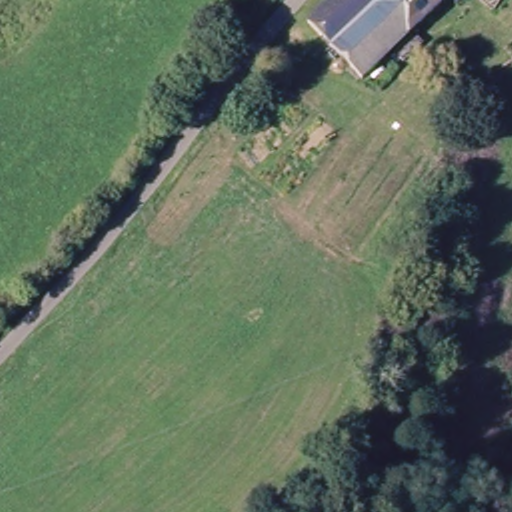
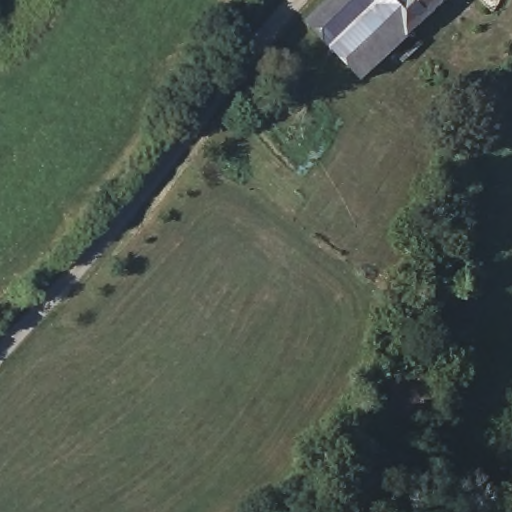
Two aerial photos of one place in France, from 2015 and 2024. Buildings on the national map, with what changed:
unchanged [(333,0),(447,0),(368,81),(307,27),(333,0)]
unchanged [(457,1),(456,0),(459,0),(457,1)]

